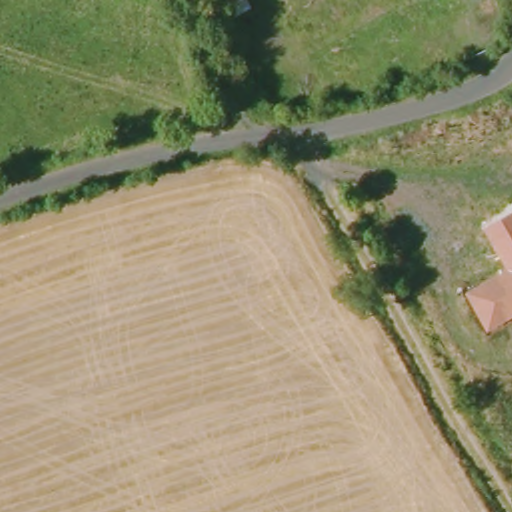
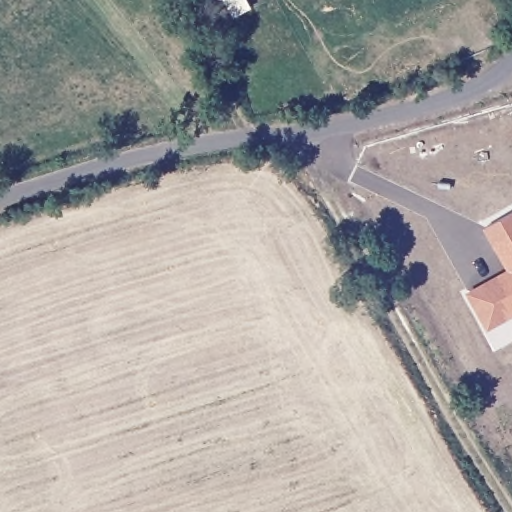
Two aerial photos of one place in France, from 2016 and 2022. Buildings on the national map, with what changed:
unchanged [(466,294),(506,270),(485,228),(512,215),(512,318),(488,331),(466,294)]

